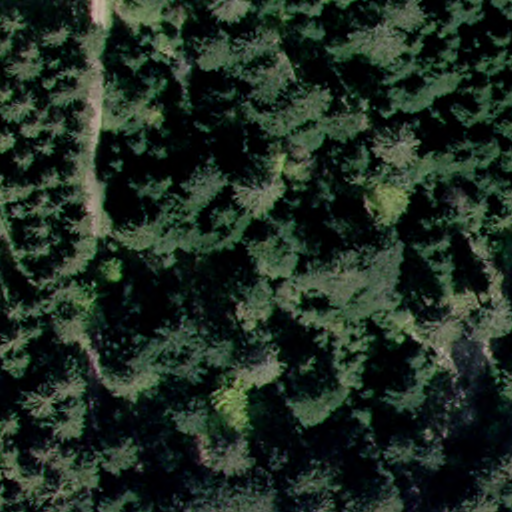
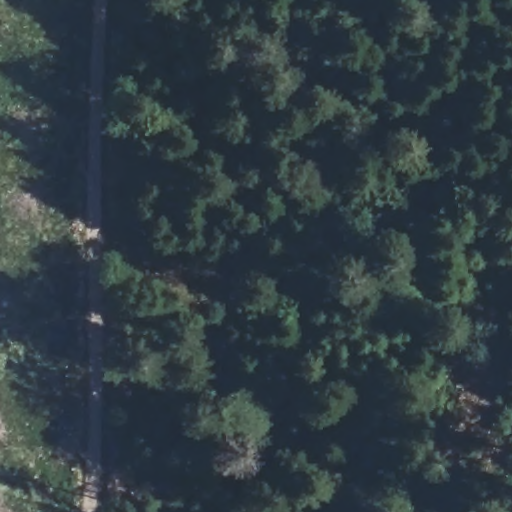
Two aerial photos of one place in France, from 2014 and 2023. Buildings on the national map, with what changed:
[]

